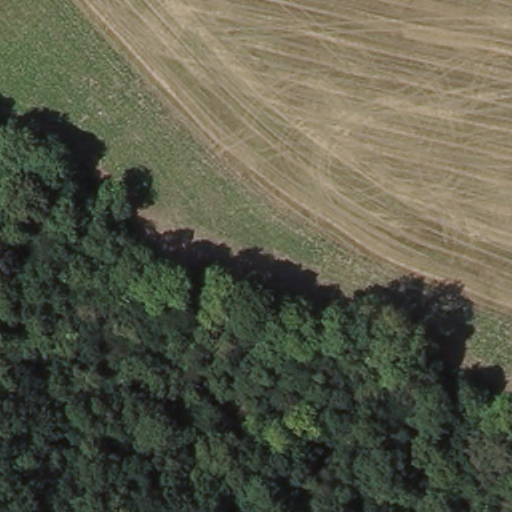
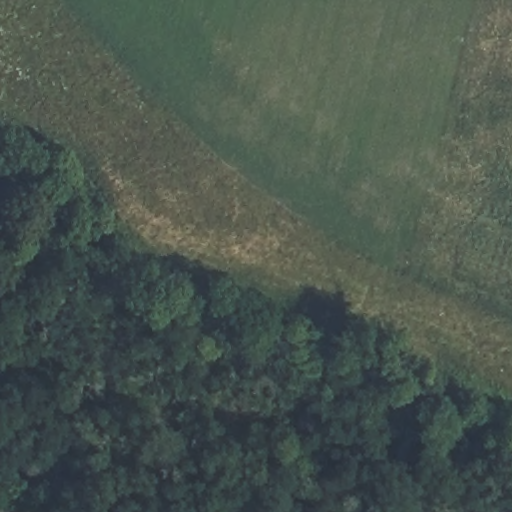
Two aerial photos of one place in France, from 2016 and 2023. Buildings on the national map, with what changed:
[]

